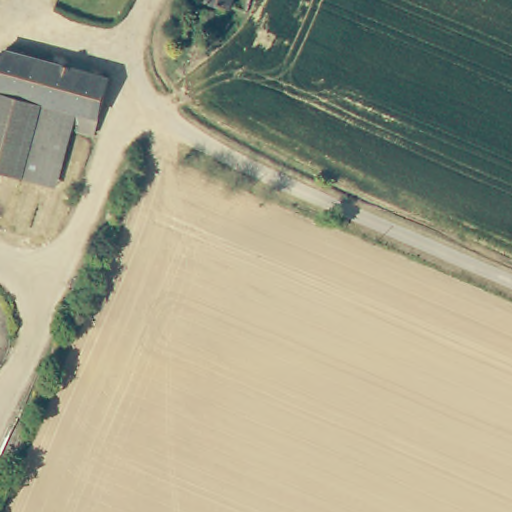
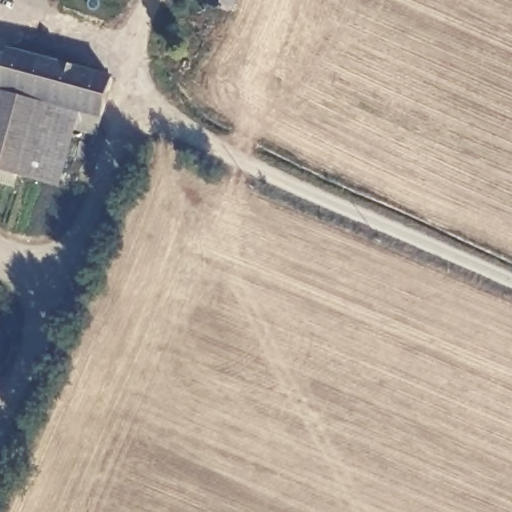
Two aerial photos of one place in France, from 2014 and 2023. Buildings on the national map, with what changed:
unchanged [(227,8),(203,1),(203,0),(229,0),(228,4),(227,8)]
unchanged [(228,4),(229,0),(245,0),(242,7),(228,4)]
unchanged [(209,11),(212,13),(215,17),(216,22),(214,27),(210,30),(206,32),(201,32),(198,30),(195,26),(195,22),(195,17),(196,15),(199,12),(203,11),(209,11)]
unchanged [(38,58),(111,78),(95,135),(74,129),(77,111),(45,102),(0,89),(0,78),(8,50),(38,58)]
unchanged [(0,171),(0,89),(45,102),(77,111),(74,129),(58,186),(24,177),(0,171)]

